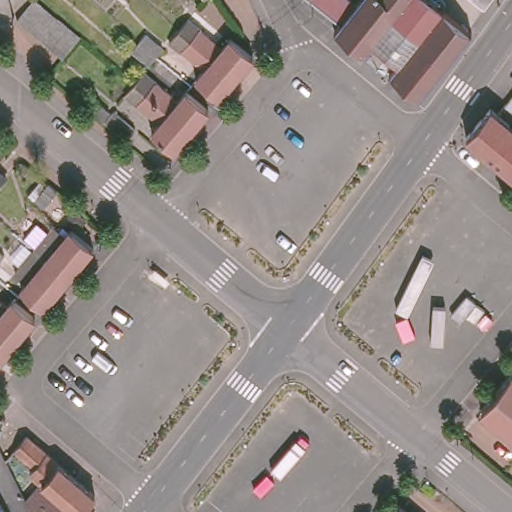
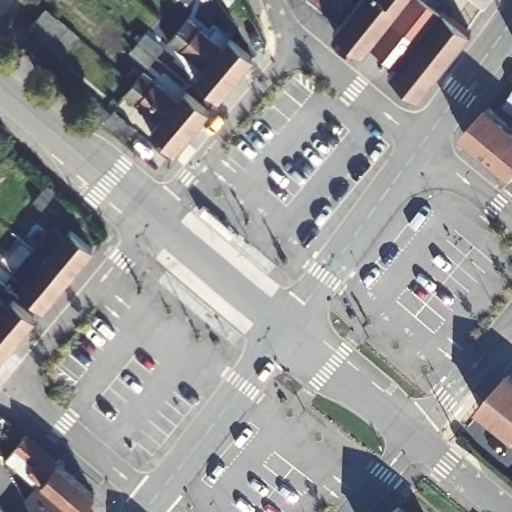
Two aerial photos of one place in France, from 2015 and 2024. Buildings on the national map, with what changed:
unchanged [(81,35),(77,40),(64,55),(17,16),(32,0),(40,0),(52,10),(81,35)]
unchanged [(199,0),(202,0),(200,1),(199,0)]
unchanged [(425,94),(395,70),(402,60),(421,35),(380,5),(356,38),(343,27),(348,21),(320,0),(439,0),(476,26),(425,94)]
unchanged [(484,0),(495,0),(491,5),(484,0)]
unchanged [(380,5),(421,35),(402,60),(377,42),(371,50),(356,38),(380,5)]
unchanged [(180,27),(190,15),(192,16),(202,25),(201,28),(223,47),(232,36),(255,55),(238,76),(180,27)]
unchanged [(221,96),(197,77),(206,67),(184,47),(182,49),(172,40),(170,39),(180,27),(238,76),(221,96)]
unchanged [(130,45),(138,37),(144,30),(162,45),(156,52),(147,61),(130,45)]
unchanged [(172,111),(148,91),(134,79),(143,68),(146,70),(157,80),(156,81),(179,100),(188,89),(211,108),(196,126),(185,117),(182,120),(172,111)]
unchanged [(193,130),(176,150),(152,130),(162,120),(139,100),(137,104),(126,95),(122,92),(134,79),(148,91),(172,111),(169,114),(180,122),(182,120),(193,130)]
unchanged [(504,105),(512,93),(512,111),(504,105)]
unchanged [(512,123),(512,169),(466,130),(486,101),(512,123)]
unchanged [(102,116),(96,124),(88,117),(81,111),(87,104),(102,116)]
unchanged [(139,140),(130,152),(126,149),(105,131),(115,119),(139,140)]
unchanged [(39,248),(27,239),(40,223),(52,233),(57,226),(69,236),(75,229),(97,246),(71,277),(38,250),(39,248)]
unchanged [(71,277),(46,307),(25,290),(30,283),(18,273),(38,250),(71,277)]
unchanged [(16,304),(37,322),(12,351),(0,341),(0,302),(10,310),(16,304)]
unchanged [(0,366),(0,341),(12,351),(0,366)]
unchanged [(504,362),(512,369),(512,400),(489,380),(504,362)]
unchanged [(512,400),(512,429),(474,398),(489,380),(512,400)]
unchanged [(59,490),(29,466),(34,460),(13,441),(24,429),(94,489),(85,500),(94,507),(89,512),(40,512),(59,490)]
unchanged [(507,435),(512,429),(512,439),(507,435)]
unchanged [(0,500),(6,512),(0,512),(0,500)]
unchanged [(401,504),(411,512),(394,512),(401,504)]

